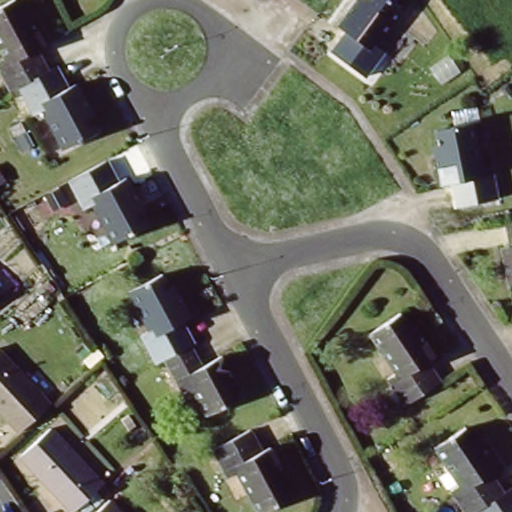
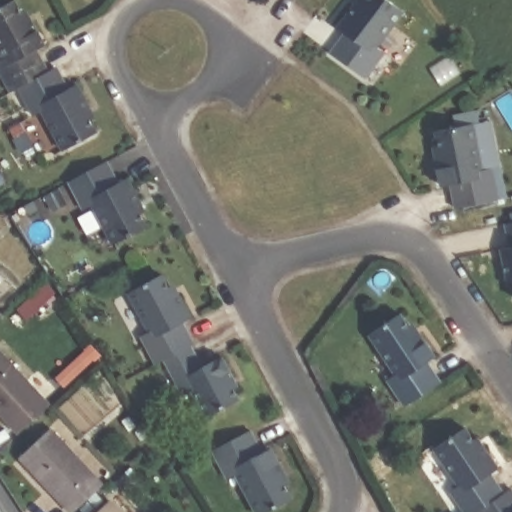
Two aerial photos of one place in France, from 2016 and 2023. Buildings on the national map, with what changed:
unchanged [(335,29),(350,7),(357,11),(364,0),(378,0),(399,15),(375,49),(380,53),(363,79),(327,54),(342,34),(335,29)]
unchanged [(15,95),(10,98),(0,81),(0,68),(2,67),(0,62),(0,15),(12,9),(23,29),(28,26),(40,46),(35,50),(49,76),(15,95)]
unchanged [(53,74),(67,95),(71,92),(82,110),(78,113),(91,133),(61,151),(38,115),(31,120),(15,95),(49,76),(53,74)]
unchanged [(483,174),(495,171),(500,202),(455,210),(451,186),(439,189),(435,163),(441,162),(437,133),(476,126),(483,174)]
unchanged [(102,167),(113,186),(118,184),(132,205),(127,208),(140,230),(111,247),(88,210),(82,215),(64,186),(102,167)]
unchanged [(512,292),(510,275),(499,276),(495,247),(507,245),(504,225),(512,223),(512,292)]
unchanged [(162,366),(153,371),(137,342),(146,337),(125,300),(156,283),(168,303),(178,297),(190,318),(180,324),(194,348),(187,353),(162,366)]
unchanged [(405,342),(414,342),(426,362),(422,370),(435,390),(400,411),(385,386),(388,379),(364,340),(392,322),(405,342)]
unchanged [(187,353),(198,374),(215,365),(227,386),(222,388),(232,406),(203,422),(190,400),(183,404),(162,366),(187,353)]
unchanged [(15,436),(0,419),(0,359),(46,408),(15,436)]
unchanged [(480,512),(452,512),(442,498),(452,492),(427,453),(459,433),(472,452),(476,450),(490,471),(483,476),(495,496),(503,491),(506,495),(480,512)]
unchanged [(81,512),(72,512),(50,489),(52,486),(25,457),(50,434),(103,490),(81,512)]
unchanged [(245,436),(257,458),(264,455),(278,478),(272,482),(283,502),(268,512),(252,512),(232,479),(225,483),(208,455),(245,436)]
unchanged [(512,505),(512,512),(480,512),(506,495),(512,505)]
unchanged [(117,512),(99,512),(110,503),(117,512)]

